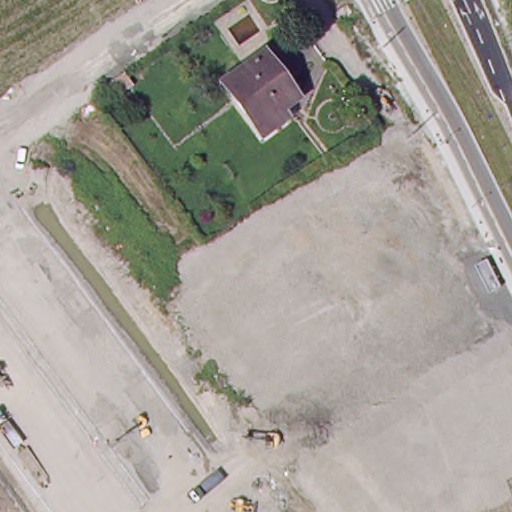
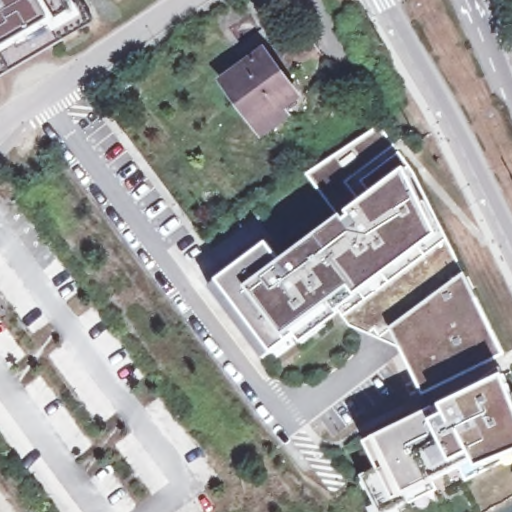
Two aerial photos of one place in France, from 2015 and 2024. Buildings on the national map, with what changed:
new [(63,5),(47,15),(0,44),(0,0),(60,0),(63,5)]
new [(89,19),(0,73),(0,44),(47,15),(63,5),(60,0),(78,0),(89,19)]
unchanged [(260,135),(255,127),(223,82),(263,52),(296,96),(301,104),(260,135)]
unchanged [(125,73),(133,85),(118,94),(110,81),(125,73)]
new [(331,300),(348,289),(353,296),(437,235),(405,167),(345,211),(349,216),(343,219),(340,215),(337,217),(305,173),(378,125),(408,166),(445,238),(462,274),(502,355),(421,396),(399,347),(347,326),(340,314),(331,300)]
new [(270,352),(263,358),(210,287),(215,280),(266,241),(281,260),(337,217),(340,215),(343,219),(349,216),(345,211),(405,167),(437,235),(353,296),(348,289),(331,300),(340,314),(300,342),(295,334),(270,352)]
new [(512,396),(512,454),(476,468),(473,460),(405,495),(408,502),(387,512),(379,512),(360,476),(376,467),(365,442),(371,438),(440,404),(503,374),(512,396)]

